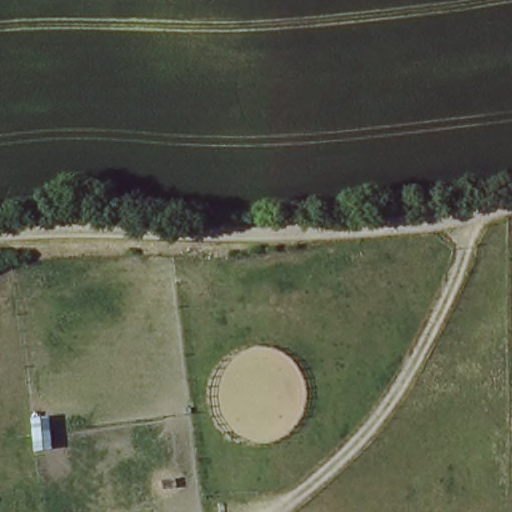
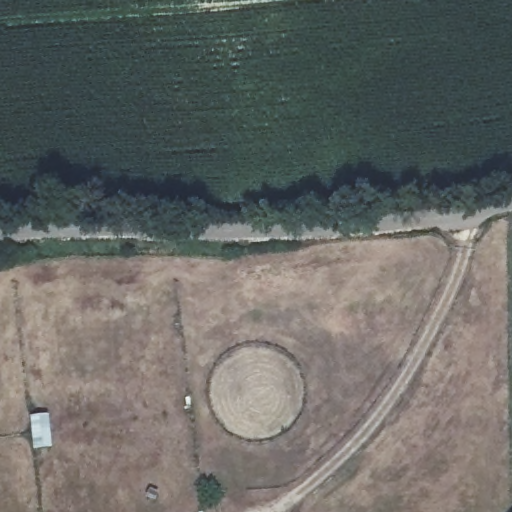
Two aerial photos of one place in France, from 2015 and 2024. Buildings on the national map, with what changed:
[]

